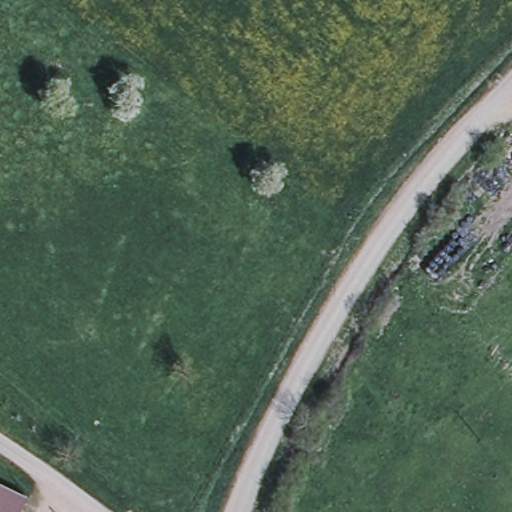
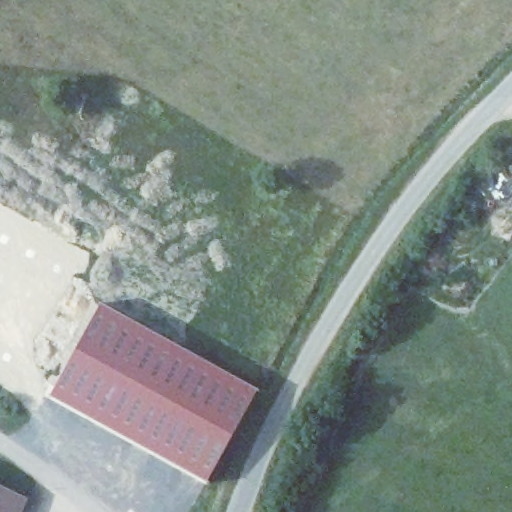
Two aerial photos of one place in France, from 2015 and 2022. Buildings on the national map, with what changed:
new [(102,305),(258,389),(208,483),(50,397),(102,305)]
unchanged [(29,503),(25,512),(0,512),(0,489),(29,503)]

